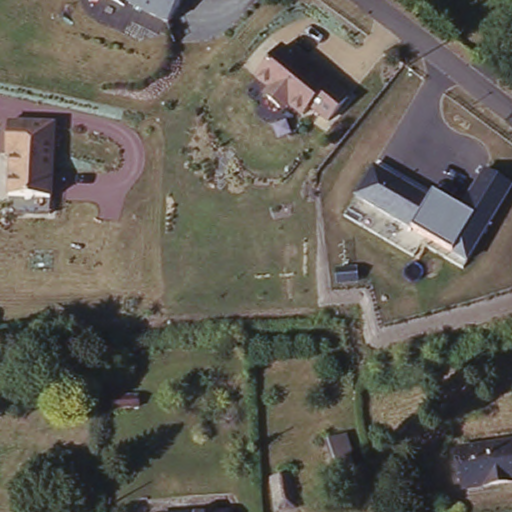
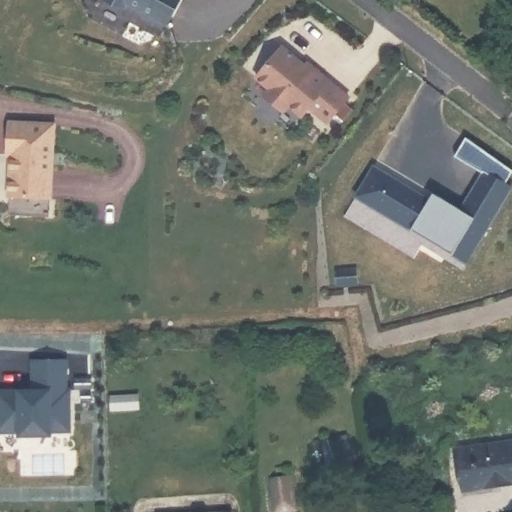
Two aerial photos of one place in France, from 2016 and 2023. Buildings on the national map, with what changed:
unchanged [(120,0),(175,0),(160,24),(120,0)]
unchanged [(324,121),(302,107),(298,115),(284,105),(280,110),(262,95),(267,86),(254,75),(276,42),(346,93),(324,121)]
unchanged [(6,121),(54,125),(50,195),(5,194),(6,121)]
unchanged [(452,253),(413,231),(357,197),(374,164),(436,194),(460,206),(484,169),(512,187),(512,189),(467,265),(452,253)]
new [(34,390),(33,358),(65,358),(65,390),(69,390),(69,427),(49,428),(50,432),(20,433),(20,430),(0,430),(0,392),(34,390)]
unchanged [(132,399),(134,411),(107,412),(106,400),(132,399)]
unchanged [(512,484),(455,491),(450,452),(512,444),(512,484)]
unchanged [(342,460),(351,484),(338,488),(330,463),(342,460)]
unchanged [(288,475),(293,506),(276,509),(271,477),(288,475)]

